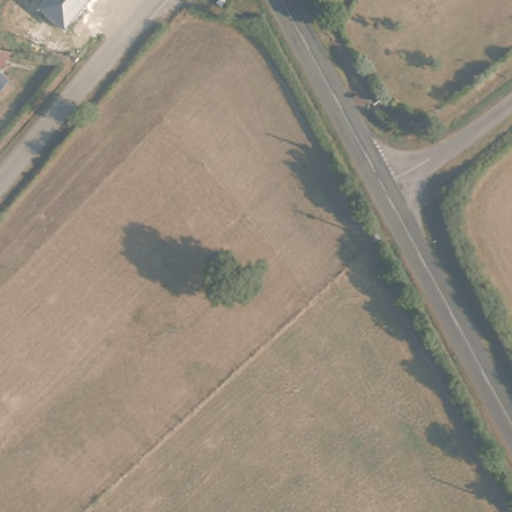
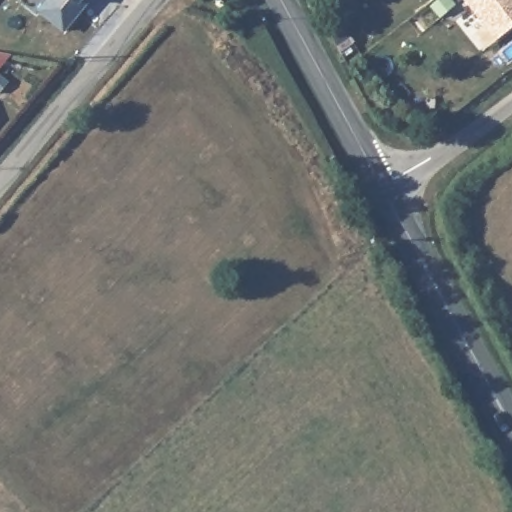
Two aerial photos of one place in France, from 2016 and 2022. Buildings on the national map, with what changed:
unchanged [(36,9),(46,0),(90,0),(64,33),(36,9)]
new [(496,41),(464,0),(512,0),(512,27),(496,41)]
unchanged [(0,71),(0,52),(13,56),(0,71)]

